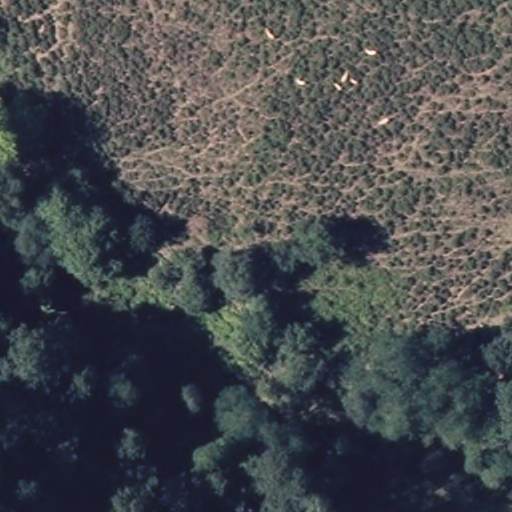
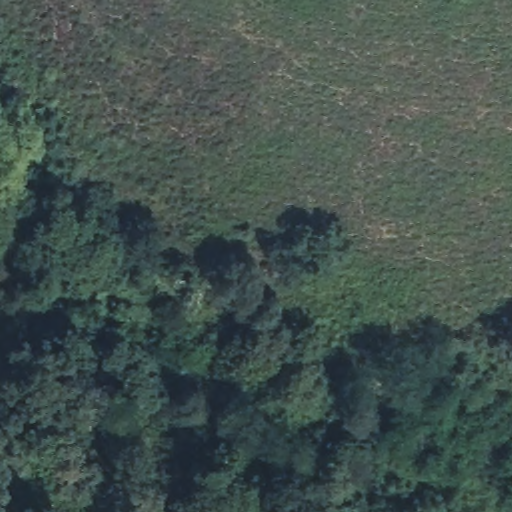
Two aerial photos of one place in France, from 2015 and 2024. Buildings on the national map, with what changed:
unchanged [(134,273),(117,300),(78,277),(94,251),(134,273)]

